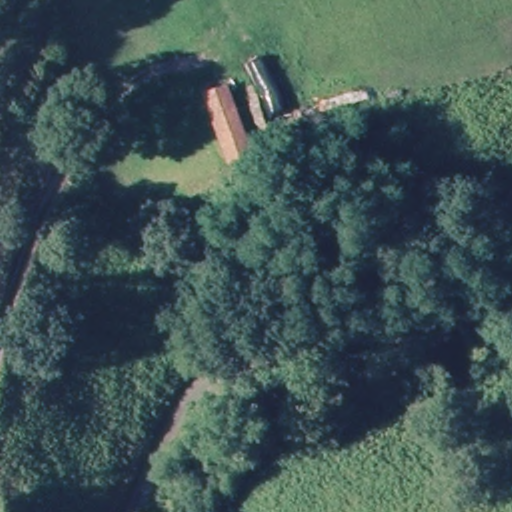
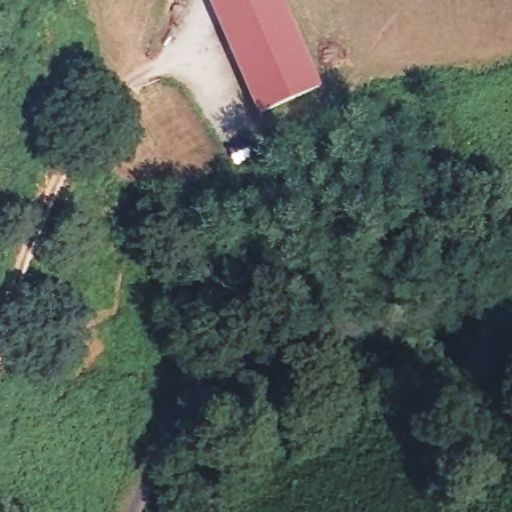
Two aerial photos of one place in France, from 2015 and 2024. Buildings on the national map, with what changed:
new [(258,114),(209,0),(284,0),(321,85),(258,114)]
demolished [(253,153),(230,162),(205,99),(229,90),(253,153)]

